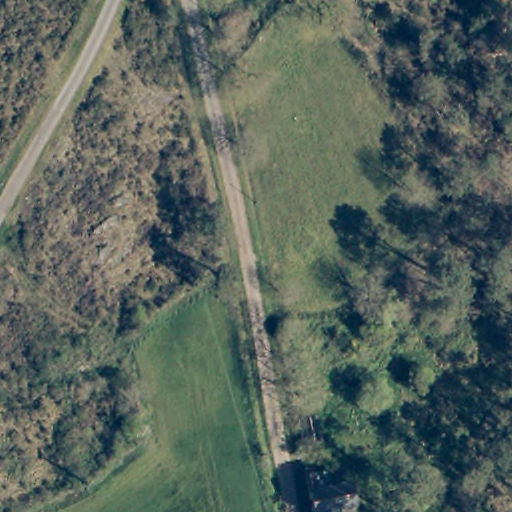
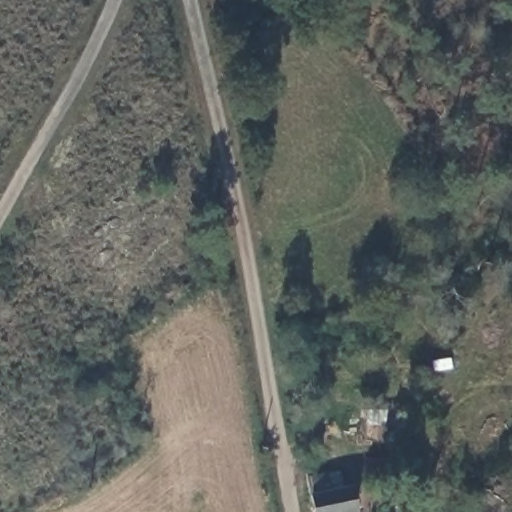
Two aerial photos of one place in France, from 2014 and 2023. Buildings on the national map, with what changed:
unchanged [(308,464),(310,474),(324,472),(326,488),(347,484),(351,508),(341,510),(341,512),(309,512),(301,466),(308,464)]

